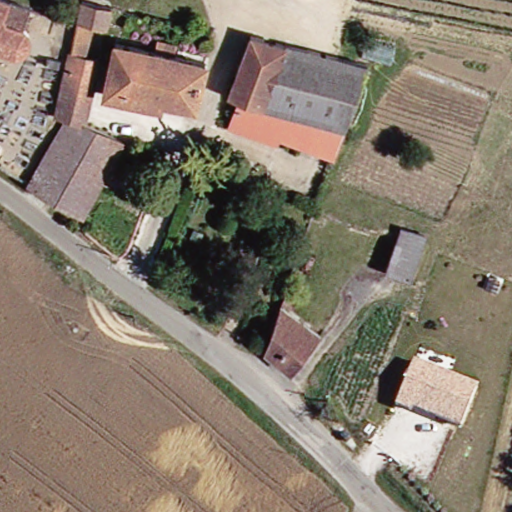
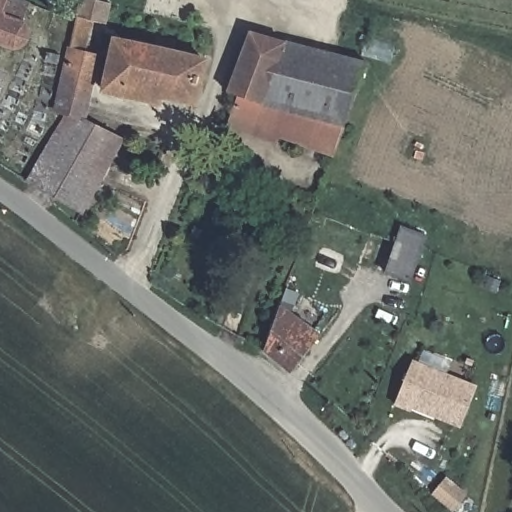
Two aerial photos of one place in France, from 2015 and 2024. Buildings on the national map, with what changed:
unchanged [(30,19),(39,24),(39,30),(37,36),(32,44),(23,46),(4,40),(0,53),(0,0),(30,0),(35,1),(30,19)]
unchanged [(72,119),(60,112),(85,19),(90,0),(120,0),(93,124),(125,143),(86,214),(38,180),(72,119)]
unchanged [(247,104),(252,104),(256,82),(242,79),(252,38),(366,63),(352,128),(290,114),(287,130),(268,125),(244,119),(247,104)]
unchanged [(179,98),(176,108),(141,109),(135,97),(129,104),(109,98),(120,41),(210,64),(202,103),(179,98)]
unchanged [(387,274),(404,228),(430,239),(418,283),(387,274)]
unchanged [(285,301),(321,335),(295,372),(267,351),(285,301)]
unchanged [(477,384),(460,429),(412,409),(410,412),(396,405),(413,358),(477,384)]

